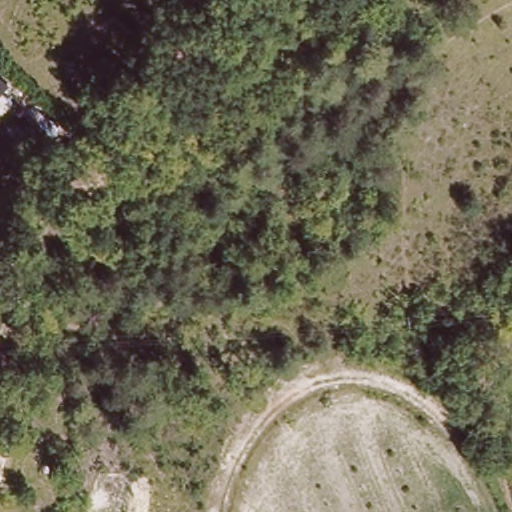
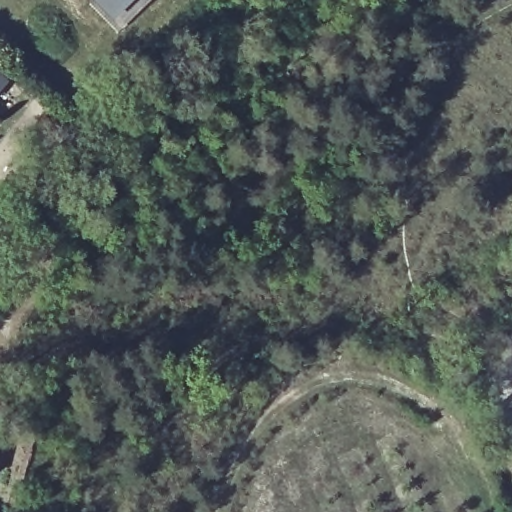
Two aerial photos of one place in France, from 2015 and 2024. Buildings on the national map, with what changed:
new [(113,25),(90,0),(140,0),(113,25)]

